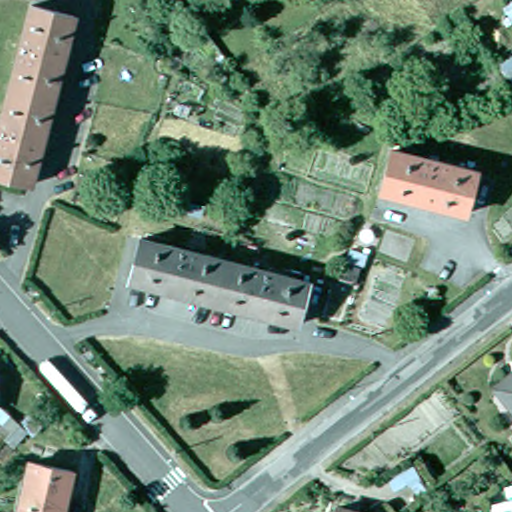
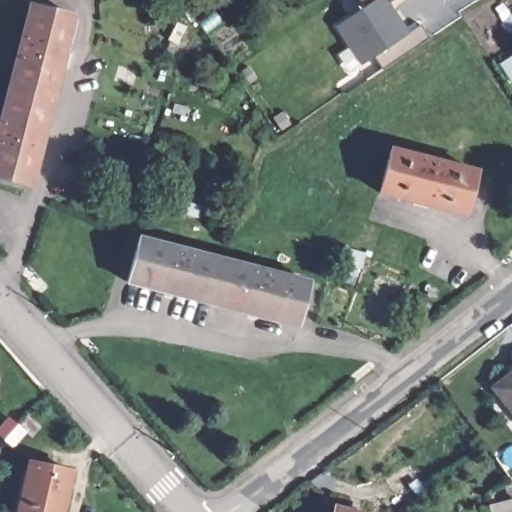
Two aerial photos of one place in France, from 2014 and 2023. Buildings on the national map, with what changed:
new [(390,2),(409,32),(421,24),(429,37),(383,67),(375,57),(362,65),(337,27),(365,7),(361,0),(393,0),(390,2)]
unchanged [(66,13),(26,182),(0,176),(0,98),(24,2),(66,13)]
unchanged [(483,9),(506,47),(492,55),(469,19),(483,9)]
unchanged [(468,167),(457,210),(375,189),(385,146),(468,167)]
unchanged [(291,321),(124,281),(134,238),(302,278),(291,321)]
unchanged [(512,378),(512,414),(495,391),(512,378)]
unchanged [(52,512),(10,512),(22,454),(62,462),(52,512)]
unchanged [(512,512),(491,512),(490,508),(512,502),(512,512)]
unchanged [(330,512),(332,506),(357,512),(330,512)]

